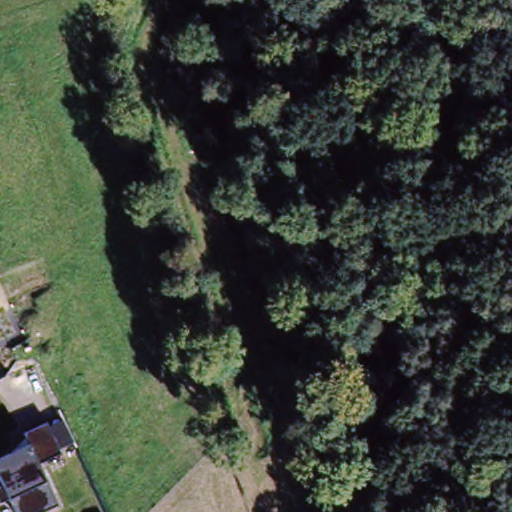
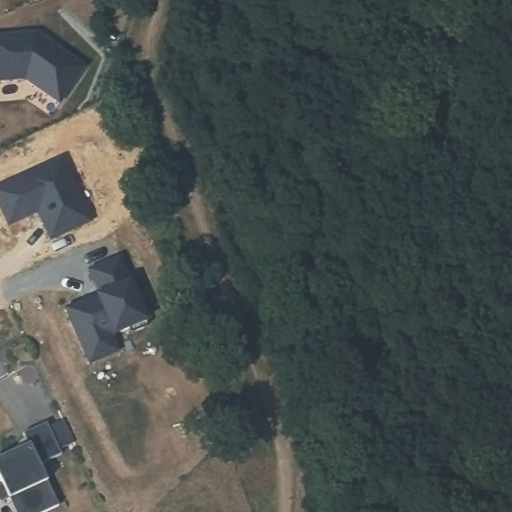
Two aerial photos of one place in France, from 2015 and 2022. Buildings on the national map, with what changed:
new [(86,65),(61,100),(27,76),(0,78),(0,35),(38,31),(86,65)]
new [(91,219),(51,237),(37,207),(26,212),(27,215),(10,223),(0,201),(0,186),(63,157),(91,219)]
new [(100,293),(91,268),(119,257),(148,326),(130,333),(128,329),(110,336),(116,350),(90,362),(66,308),(100,293)]
unchanged [(15,512),(7,498),(1,502),(0,500),(0,487),(2,485),(0,480),(0,459),(30,443),(25,433),(47,424),(50,428),(63,421),(73,442),(58,449),(60,455),(40,463),(60,506),(44,512),(15,512)]

